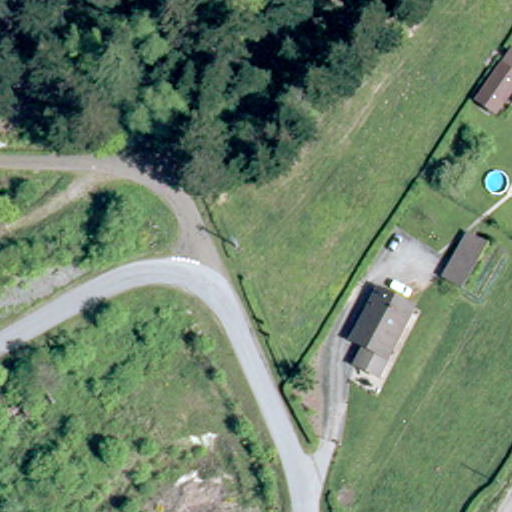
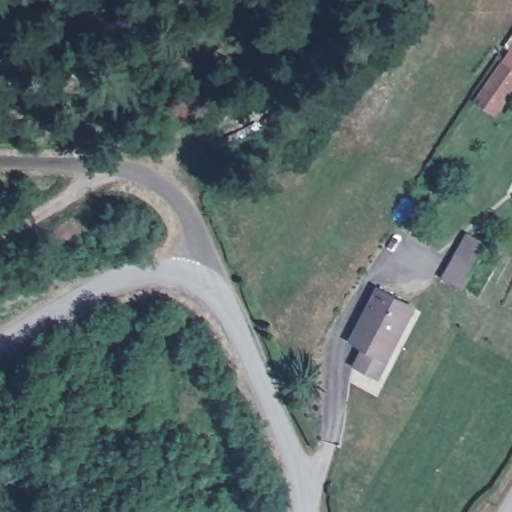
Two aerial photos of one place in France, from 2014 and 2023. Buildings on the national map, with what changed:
unchanged [(504,78),(512,65),(512,99),(496,123),(481,114),(504,78)]
unchanged [(488,247),(491,249),(464,293),(462,291),(446,282),(472,238),(488,247)]
unchanged [(422,301),(384,370),(363,358),(372,341),(358,333),(386,282),(422,301)]

